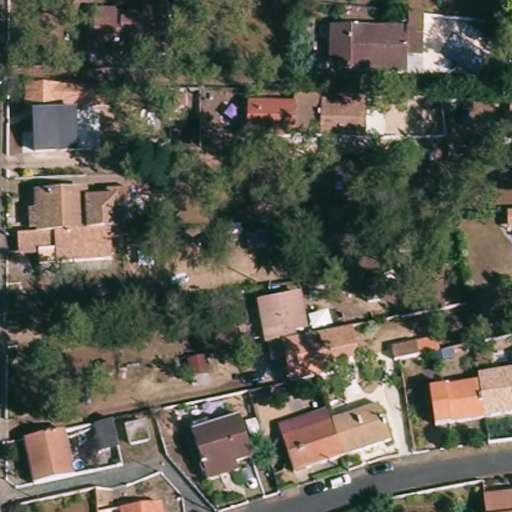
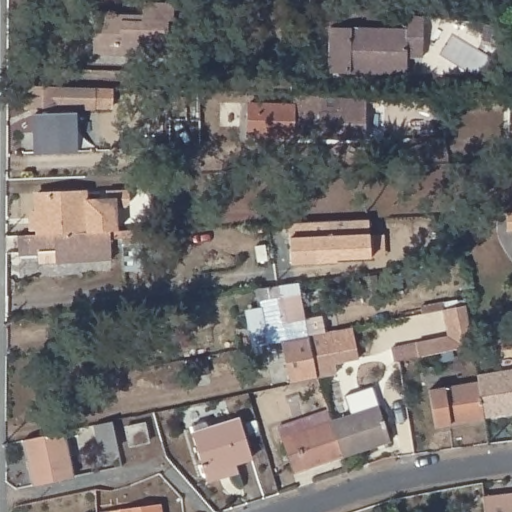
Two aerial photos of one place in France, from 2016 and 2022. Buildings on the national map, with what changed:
unchanged [(85,40),(87,6),(108,6),(108,16),(133,17),(133,0),(166,0),(166,17),(160,17),(159,52),(111,51),(85,50),(85,40)]
unchanged [(408,28),(410,9),(426,11),(422,54),(406,54),(405,70),(328,65),(331,23),(408,28)]
unchanged [(26,81),(91,83),(91,104),(56,103),(56,142),(24,141),(25,97),(26,81)]
unchanged [(296,86),(321,87),(368,89),(367,131),(292,128),(250,127),(252,94),(295,95),(296,86)]
unchanged [(512,107),(512,141),(508,140),(509,106),(512,107)]
unchanged [(28,203),(35,203),(34,185),(83,183),(83,190),(104,189),(104,181),(126,181),(126,192),(123,197),(114,197),(115,221),(110,221),(84,222),(36,224),(35,219),(29,219),(28,203)]
unchanged [(510,229),(509,210),(512,210),(512,229),(510,229)]
unchanged [(36,224),(84,222),(110,221),(115,221),(151,220),(151,237),(120,238),(120,229),(108,230),(109,251),(36,255),(36,243),(16,243),(16,225),(36,224)]
new [(374,221),(375,247),(341,249),(341,264),(296,266),(294,224),(374,221)]
unchanged [(412,235),(414,253),(385,256),(383,238),(412,235)]
unchanged [(379,276),(383,302),(371,304),(367,278),(379,276)]
unchanged [(294,295),(301,337),(280,340),(264,343),(257,300),(294,295)]
unchanged [(349,328),(355,360),(332,365),(334,376),(315,380),(306,336),(349,328)]
unchanged [(301,337),(306,336),(315,380),(289,385),(280,340),(301,337)]
unchanged [(418,344),(421,358),(401,362),(397,363),(394,349),(418,344)]
unchanged [(482,414),(479,377),(478,372),(512,368),(512,411),(482,414)]
unchanged [(479,377),(482,414),(432,420),(428,383),(479,377)]
unchanged [(241,406),(248,443),(232,447),(235,460),(202,468),(191,416),(241,406)]
unchanged [(380,406),(389,442),(341,455),(341,454),(331,419),(380,406)]
unchanged [(329,409),(331,419),(341,454),(292,466),(281,420),(329,409)]
unchanged [(116,417),(121,444),(103,448),(98,421),(116,417)]
unchanged [(61,423),(71,468),(31,476),(22,431),(61,423)]
unchanged [(148,425),(151,443),(133,447),(130,428),(148,425)]
unchanged [(480,493),(512,489),(512,512),(482,512),(481,499),(480,493)]
unchanged [(161,512),(120,512),(119,501),(159,496),(161,512)]

